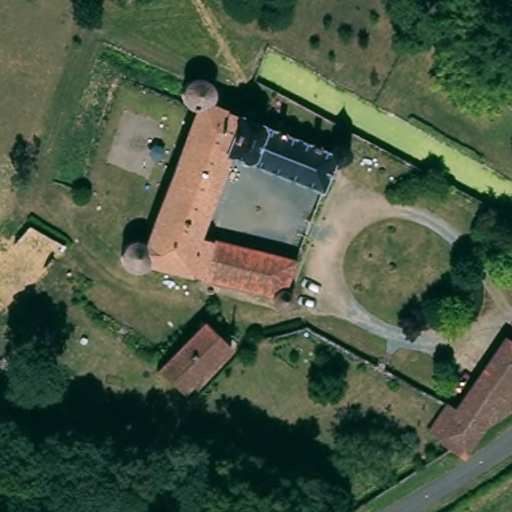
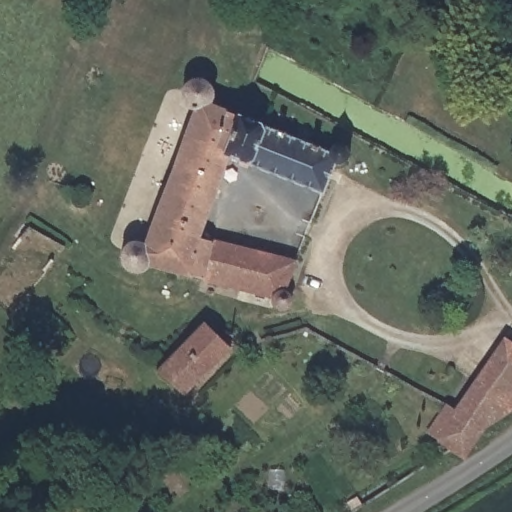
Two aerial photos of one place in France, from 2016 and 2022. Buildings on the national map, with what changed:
unchanged [(136,244),(140,240),(145,236),(151,239),(158,242),(210,109),(197,106),(193,97),(192,91),(193,85),(196,80),(199,76),(203,74),(210,75),(217,79),(221,85),(223,91),(220,100),(252,114),(237,155),(207,228),(298,258),(287,287),(295,292),(297,292),(296,296),(294,300),(289,302),(177,265),(159,260),(155,262),(151,266),(147,267),(141,267),(137,265),(134,262),(133,258),(132,255),(132,249),(136,244)]
unchanged [(337,151),(352,146),(357,149),(359,153),(359,159),(355,164),(349,163),(344,163),(329,192),(237,155),(252,114),(337,151)]
unchanged [(182,313),(176,323),(163,315),(169,305),(182,313)]
unchanged [(215,322),(234,349),(180,392),(179,391),(163,372),(155,367),(188,337),(215,322)]
unchanged [(504,341),(512,345),(512,413),(482,432),(469,455),(463,459),(452,452),(442,445),(429,436),(447,407),(457,413),(504,341)]

